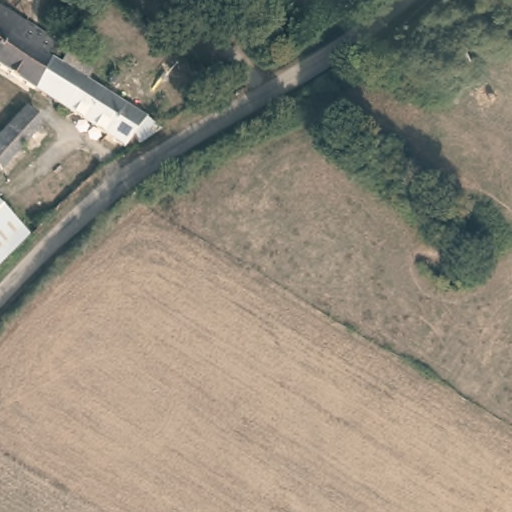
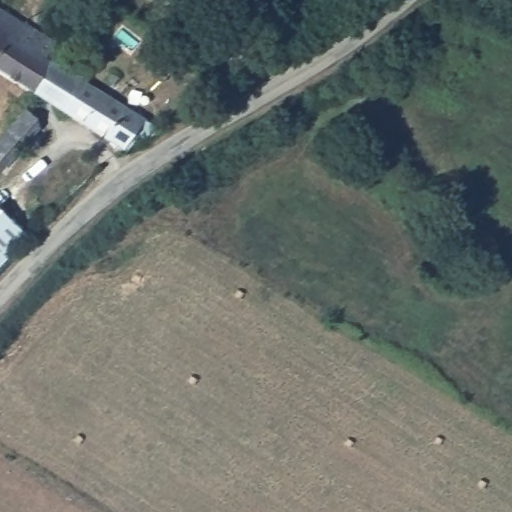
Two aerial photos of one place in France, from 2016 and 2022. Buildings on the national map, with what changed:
unchanged [(0,4),(55,38),(53,44),(60,49),(35,89),(0,66),(0,4)]
unchanged [(137,140),(131,134),(121,144),(35,89),(60,49),(72,49),(87,59),(86,64),(92,70),(86,79),(159,126),(137,140)]
unchanged [(2,166),(0,164),(0,135),(27,106),(40,123),(2,166)]
unchanged [(0,266),(0,213),(28,238),(0,266)]

